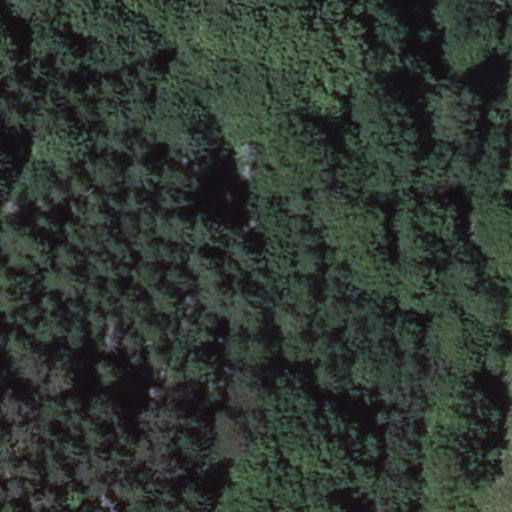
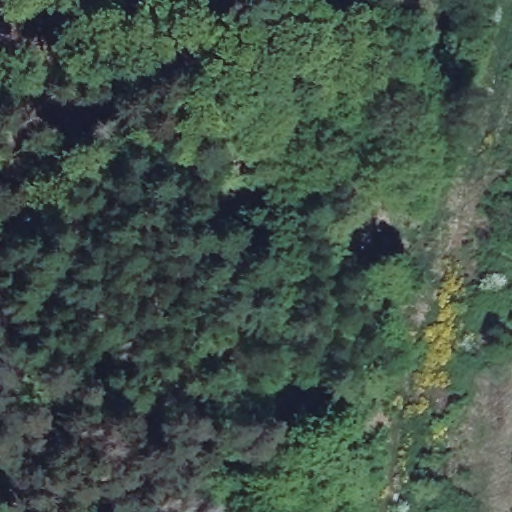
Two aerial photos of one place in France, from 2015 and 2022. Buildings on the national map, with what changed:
[]

